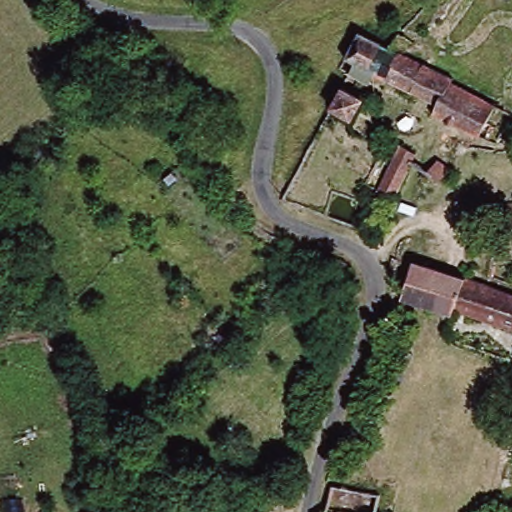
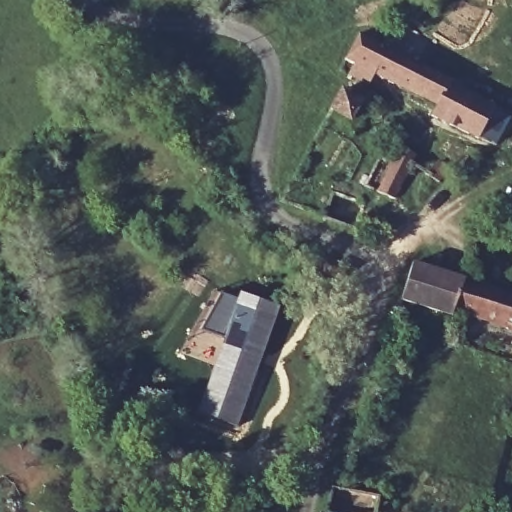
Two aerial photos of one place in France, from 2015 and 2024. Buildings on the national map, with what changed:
unchanged [(482,133),(445,112),(445,109),(372,75),(367,82),(347,75),(350,67),(343,64),(357,36),(387,49),(457,80),(456,86),(512,117),(512,121),(495,150),(480,141),(482,133)]
new [(342,89),(364,101),(351,124),(329,111),(342,89)]
unchanged [(385,190),(412,138),(430,147),(402,199),(385,190)]
unchanged [(507,239),(512,225),(512,240),(507,239)]
unchanged [(347,278),(332,273),(340,252),(355,260),(347,278)]
unchanged [(455,313),(450,321),(402,303),(415,263),(483,290),(512,300),(512,334),(455,313)]
new [(201,329),(220,292),(237,298),(239,291),(280,306),(237,427),(197,413),(223,338),(201,329)]
unchanged [(354,512),(329,512),(329,507),(354,512)]

